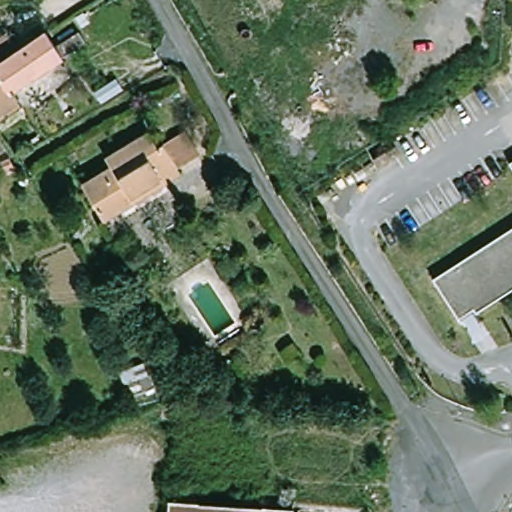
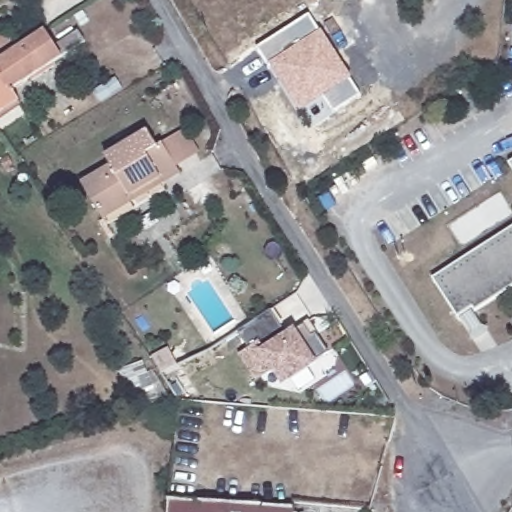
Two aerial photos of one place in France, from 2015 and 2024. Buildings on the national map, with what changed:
new [(352,77),(350,78),(361,95),(334,112),(323,96),(300,111),(269,63),(267,65),(256,49),(309,14),(320,31),(322,29),(352,77)]
unchanged [(15,49),(43,31),(51,45),(75,29),(82,40),(9,87),(0,75),(0,59),(15,49)]
unchanged [(4,35),(15,49),(0,59),(0,38),(4,35)]
unchanged [(9,87),(19,102),(0,115),(0,75),(9,87)]
unchanged [(104,220),(83,185),(112,166),(108,159),(149,134),(158,149),(163,145),(186,131),(199,153),(176,167),(180,174),(164,184),(134,202),(104,220)]
unchanged [(512,157),(512,164),(509,159),(512,157)]
unchanged [(477,305),(463,315),(438,277),(512,227),(512,288),(481,310),(477,305)]
new [(266,310),(283,335),(299,324),(307,335),(311,332),(324,352),(278,382),(269,368),(252,379),(235,354),(244,348),(233,332),(266,310)]
unchanged [(167,496),(295,504),(294,512),(165,512),(167,496)]

